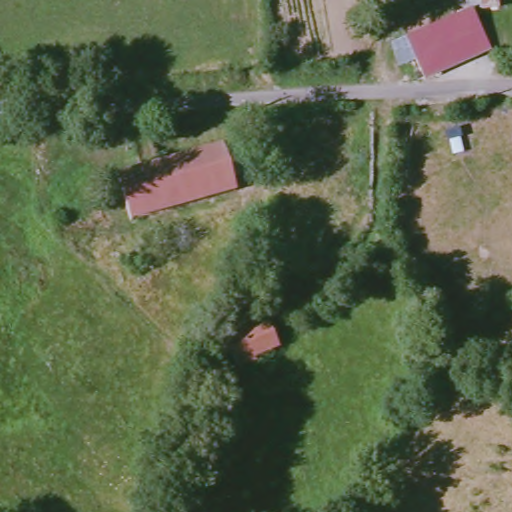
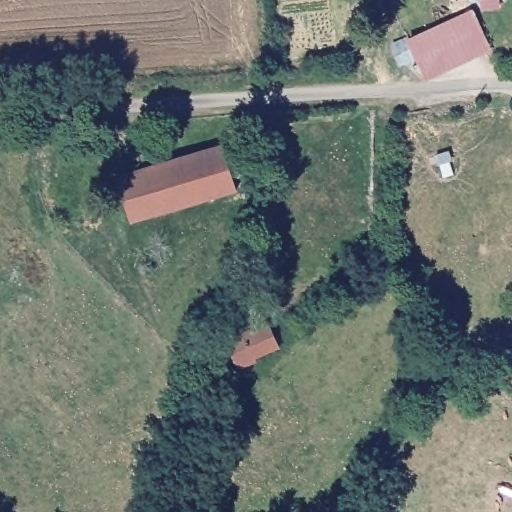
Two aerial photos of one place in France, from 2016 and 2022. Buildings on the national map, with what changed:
unchanged [(468,8),(467,0),(500,0),(500,8),(468,8)]
unchanged [(492,50),(427,78),(411,41),(478,15),(492,50)]
unchanged [(238,189),(132,218),(119,172),(226,144),(238,189)]
unchanged [(280,345),(259,347),(259,352),(238,356),(233,335),(243,325),(276,319),(280,345)]

